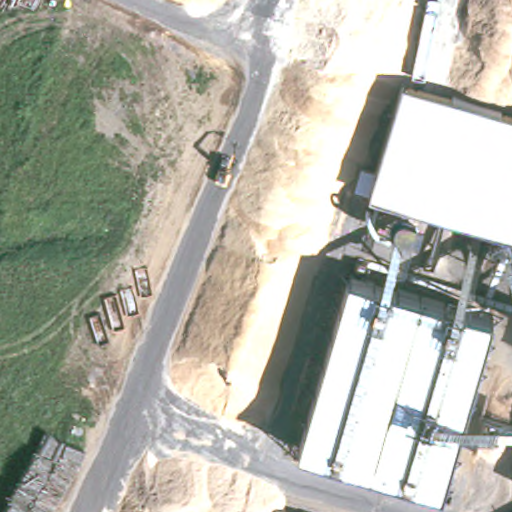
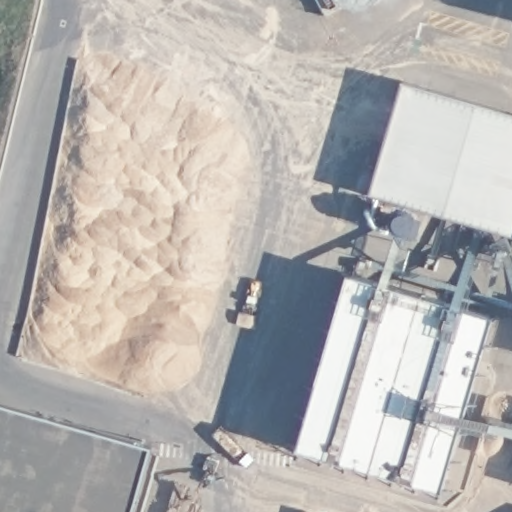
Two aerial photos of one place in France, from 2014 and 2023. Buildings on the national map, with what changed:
unchanged [(512,111),(512,236),(368,193),(402,78),(512,111)]
unchanged [(349,273),(499,317),(465,432),(454,471),(447,494),(425,487),(297,449),(317,381),(349,273)]
new [(0,512),(0,405),(151,447),(132,512),(0,512)]

